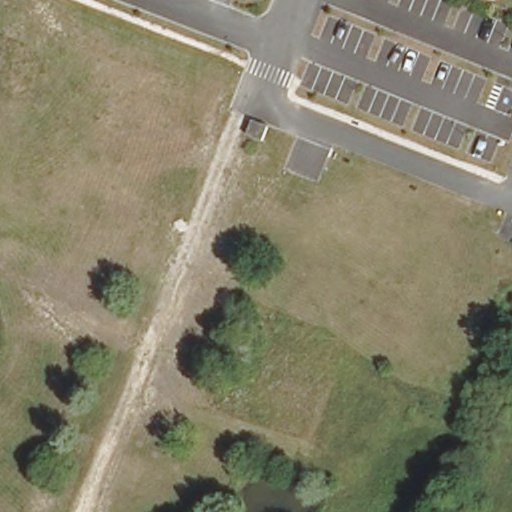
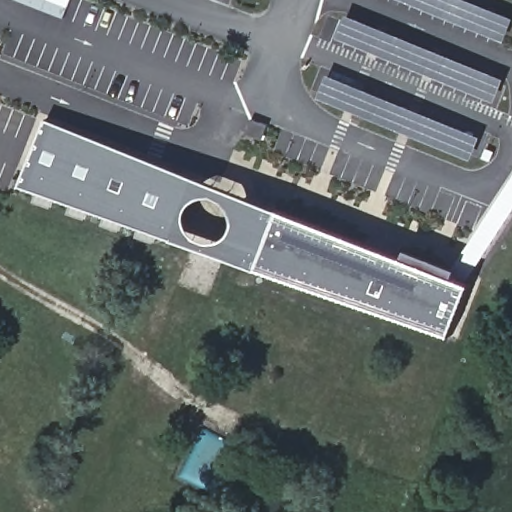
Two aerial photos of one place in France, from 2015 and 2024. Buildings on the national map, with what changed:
new [(18,0),(71,0),(64,18),(18,0)]
unchanged [(260,144),(242,137),(249,118),(267,125),(260,144)]
new [(467,286),(447,336),(19,183),(44,120),(467,286)]

